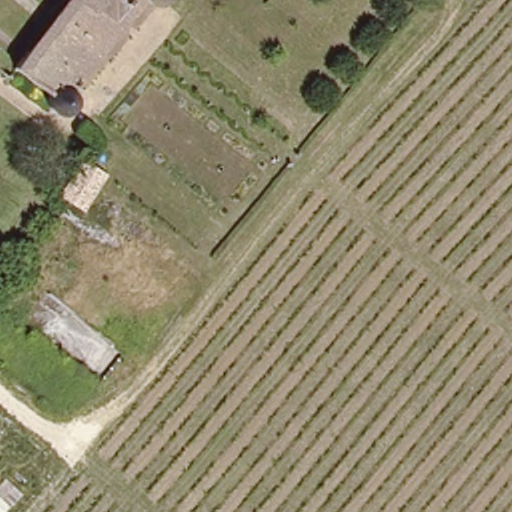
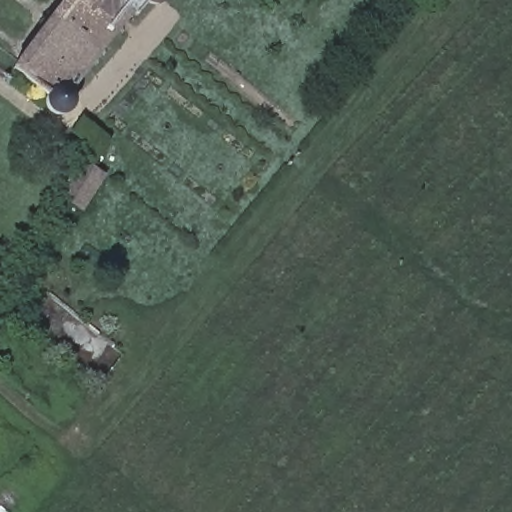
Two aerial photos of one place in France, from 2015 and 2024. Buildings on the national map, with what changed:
unchanged [(74,91),(76,96),(77,106),(74,111),(63,119),(53,116),(47,108),(44,102),(43,98),(32,91),(27,96),(1,77),(58,0),(137,0),(101,46),(69,86),(74,91)]
unchanged [(151,3),(148,1),(147,0),(163,0),(158,3),(151,3)]
unchanged [(84,160),(104,175),(78,213),(58,199),(84,160)]

